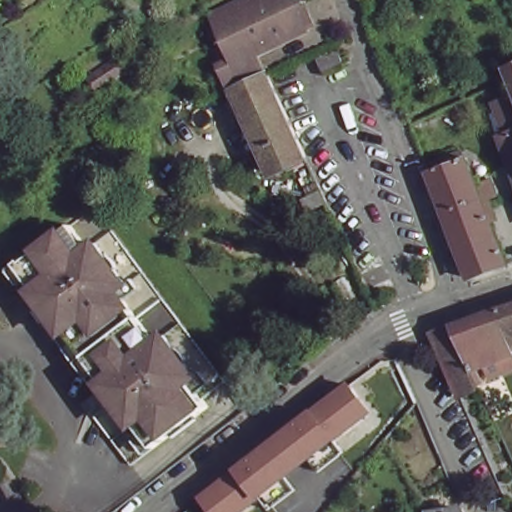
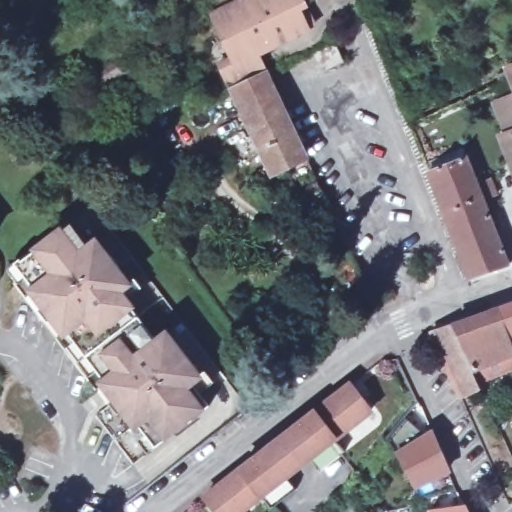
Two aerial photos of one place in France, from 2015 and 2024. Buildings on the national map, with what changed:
unchanged [(226,89),(218,72),(230,66),(209,20),(252,0),(294,0),(298,8),(292,11),(303,33),(248,60),(255,75),(226,89)]
unchanged [(336,62),(318,72),(309,56),(327,46),(336,62)]
unchanged [(122,74),(95,93),(84,78),(111,59),(122,74)]
unchanged [(511,72),(512,71),(512,74),(511,72)]
unchanged [(259,73),(300,158),(266,172),(226,89),(255,75),(259,73)]
unchanged [(509,101),(512,100),(512,110),(509,101)]
unchanged [(474,177),(479,175),(483,186),(477,189),(508,265),(472,278),(430,173),(466,158),(474,177)]
unchanged [(110,245),(108,246),(215,385),(193,401),(198,407),(141,450),(4,270),(81,210),(110,245)]
unchanged [(500,312),(512,307),(512,341),(500,312)]
unchanged [(495,376),(490,365),(473,370),(453,328),(500,312),(512,341),(512,371),(495,376)]
unchanged [(485,398),(466,407),(438,345),(438,333),(453,328),(473,370),(485,398)]
unchanged [(339,440),(348,451),(322,473),(311,460),(290,475),(301,490),(273,512),(262,500),(245,512),(213,512),(201,497),(350,381),(375,413),(339,440)]
new [(415,486),(394,451),(389,443),(408,418),(431,435),(434,433),(450,470),(415,486)]
unchanged [(466,507),(468,512),(440,512),(465,507),(466,507)]

